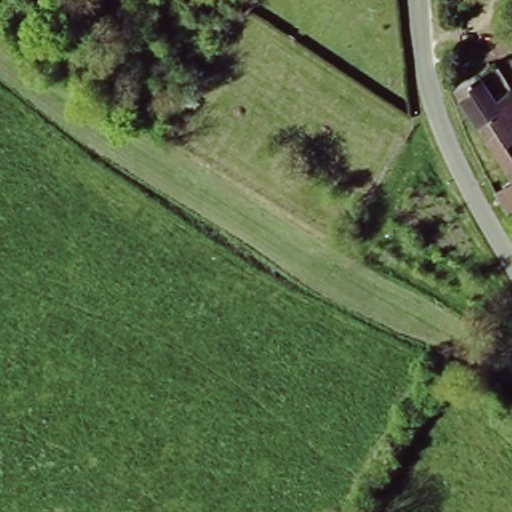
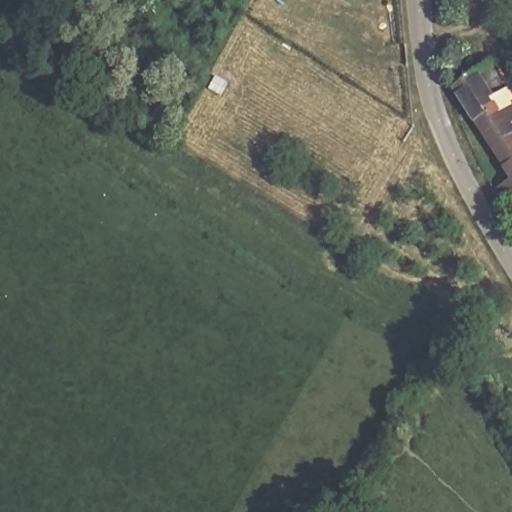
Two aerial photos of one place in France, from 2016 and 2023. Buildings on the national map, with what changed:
unchanged [(507,179),(447,88),(487,62),(505,90),(510,87),(512,90),(512,208),(502,215),(487,192),(507,179)]

